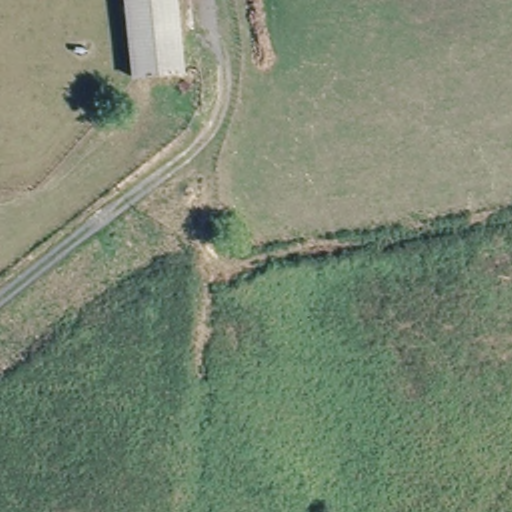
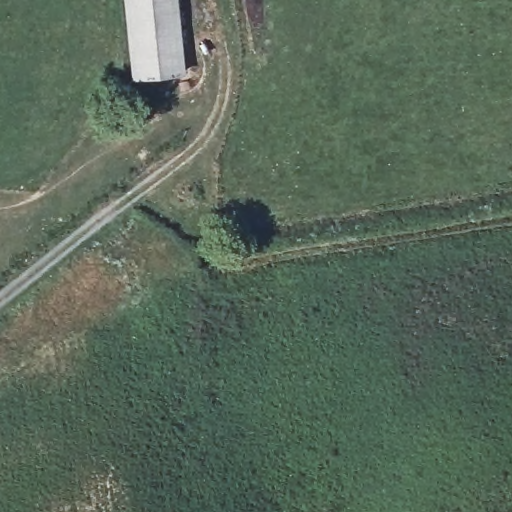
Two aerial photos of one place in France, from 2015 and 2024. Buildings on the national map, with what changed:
unchanged [(119,0),(179,0),(177,75),(116,73),(119,0)]

